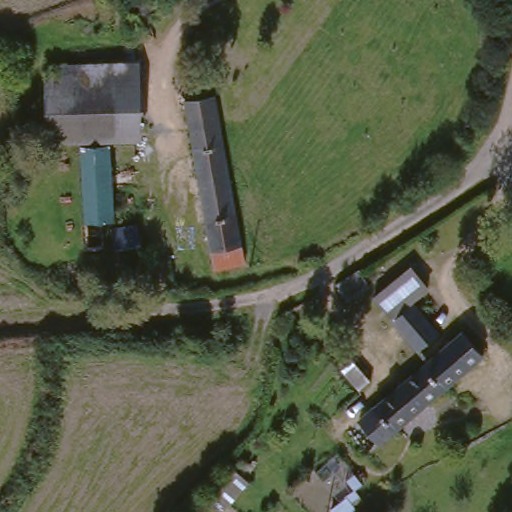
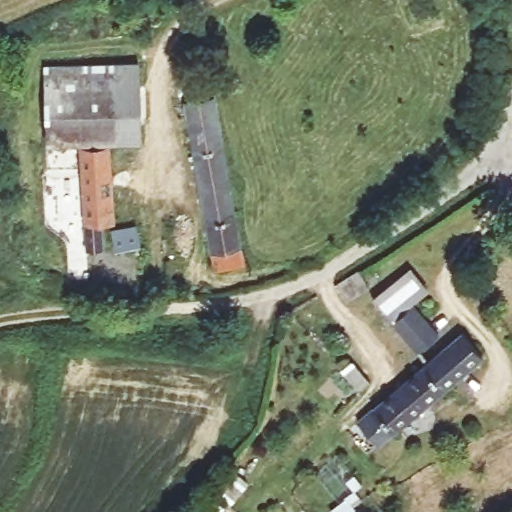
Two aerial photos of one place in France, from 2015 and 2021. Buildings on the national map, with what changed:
unchanged [(141,151),(106,151),(73,151),(39,151),(40,70),(103,71),(143,71),(142,101),(141,151)]
unchanged [(209,268),(172,102),(206,97),(244,261),(209,268)]
unchanged [(106,224),(93,224),(93,254),(72,254),(73,151),(106,151),(106,224)]
unchanged [(111,244),(111,226),(134,225),(136,243),(111,244)]
unchanged [(461,337),(483,360),(380,451),(359,428),(424,370),(369,303),(400,276),(422,301),(410,312),(446,350),(461,337)]
unchanged [(364,294),(344,311),(331,296),(353,281),(364,294)]
unchanged [(225,512),(211,512),(201,503),(234,468),(251,483),(225,512)]

